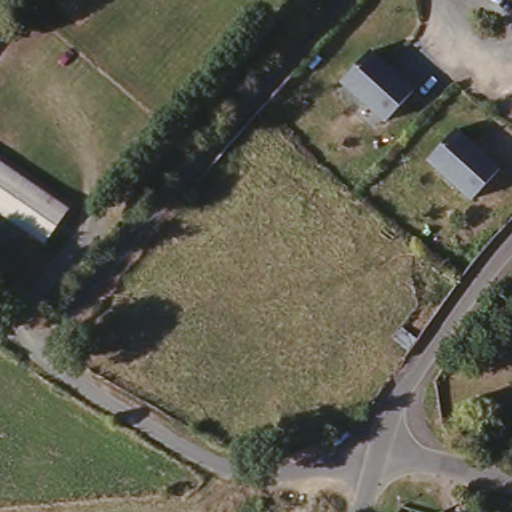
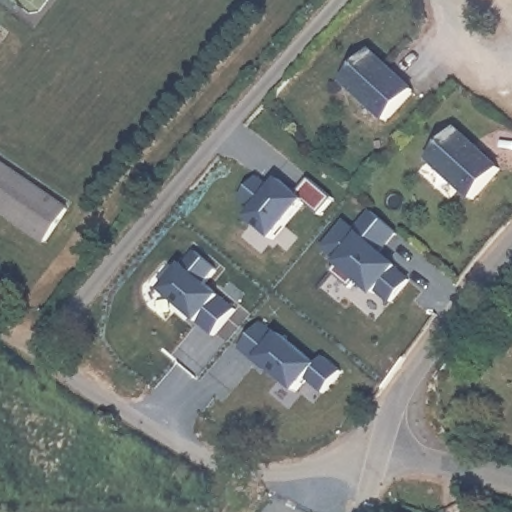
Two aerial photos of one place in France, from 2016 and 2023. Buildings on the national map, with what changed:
unchanged [(373,47),(414,88),(384,119),(343,79),(373,47)]
unchanged [(459,123),(500,165),(469,194),(428,156),(459,123)]
unchanged [(44,248),(0,218),(0,168),(68,213),(44,248)]
new [(256,209),(240,196),(259,174),(273,187),(285,174),(305,191),(312,182),(335,200),(319,217),(305,206),(277,241),(249,218),(256,209)]
new [(362,282),(356,290),(335,274),(342,264),(321,249),(354,213),(371,227),(380,217),(401,236),(392,248),(412,263),(406,269),(416,279),(393,307),(362,282)]
new [(219,265),(203,283),(242,314),(225,338),(159,291),(193,247),(219,265)]
new [(266,319),(314,359),(322,353),(347,373),(326,397),(311,384),(301,395),(241,347),(266,319)]

